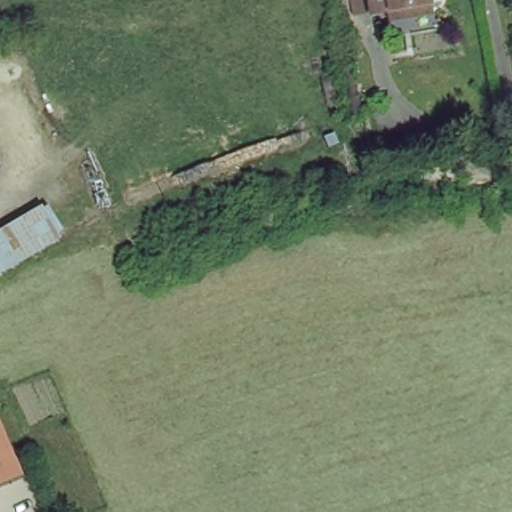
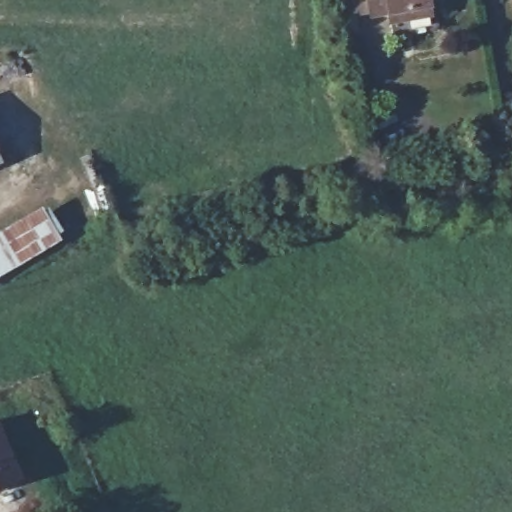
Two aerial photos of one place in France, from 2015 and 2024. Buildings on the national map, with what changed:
unchanged [(422,7),(385,18),(378,7),(367,8),(365,0),(421,0),(422,7)]
unchanged [(0,276),(0,233),(37,209),(60,237),(0,276)]
unchanged [(0,483),(0,425),(0,424),(16,479),(0,483)]

